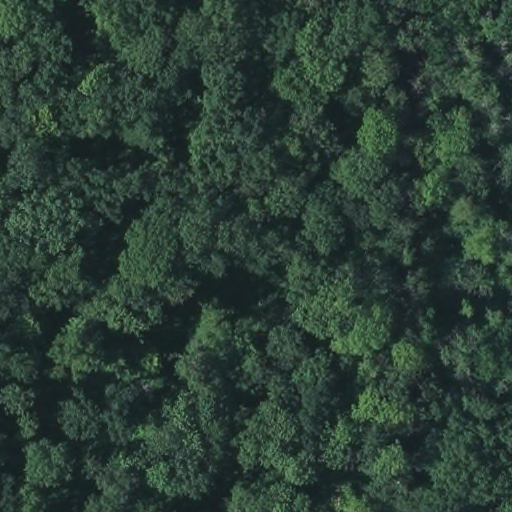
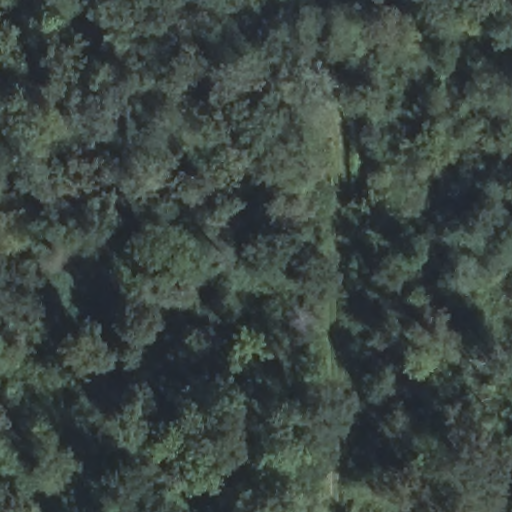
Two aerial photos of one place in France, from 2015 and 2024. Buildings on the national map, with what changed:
unchanged [(363,194),(384,148),(424,165),(409,210),(363,194)]

